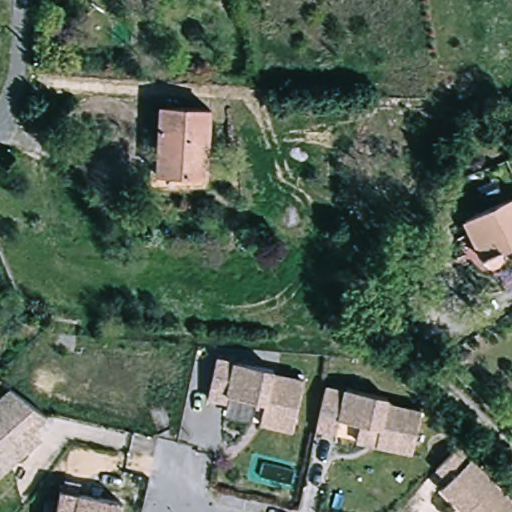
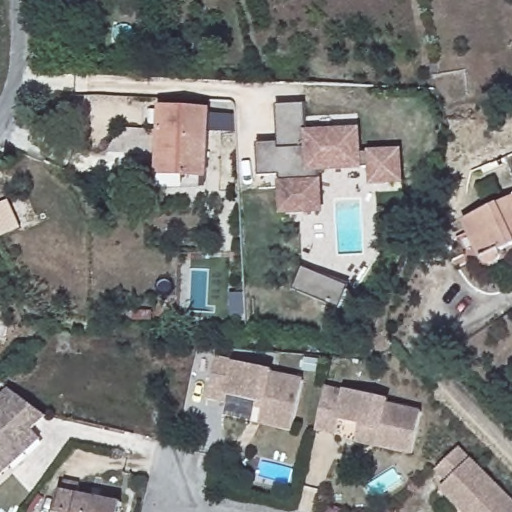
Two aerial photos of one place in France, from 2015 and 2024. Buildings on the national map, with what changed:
new [(306,102),(307,129),(361,126),(363,149),(403,147),(404,182),(370,184),(369,168),(321,170),(324,212),(280,214),(277,180),(281,179),(281,173),(260,174),(258,143),(279,142),(277,103),(306,102)]
unchanged [(209,175),(160,171),(165,104),(214,107),(209,175)]
unchanged [(508,252),(508,255),(506,258),(503,262),(498,263),(493,262),(488,260),(485,255),(467,220),(512,198),(512,244),(507,247),(508,252)]
new [(9,200),(22,227),(0,238),(0,204),(9,200)]
new [(338,308),(303,294),(291,289),(301,266),(312,271),(347,285),(338,308)]
unchanged [(275,376),(306,382),(295,432),(262,424),(267,405),(231,396),(229,402),(210,398),(217,371),(219,359),(237,363),(276,371),(275,376)]
unchanged [(360,423),(340,420),(337,433),(316,428),(325,387),(344,391),(345,388),(387,397),(386,403),(421,411),(413,452),(376,444),(356,440),(360,423)]
unchanged [(11,388),(36,406),(46,412),(48,414),(34,427),(43,437),(14,465),(0,478),(0,398),(11,388)]
unchanged [(439,471),(461,447),(512,497),(512,512),(468,512),(445,489),(451,482),(439,471)]
unchanged [(62,493),(64,493),(66,483),(81,487),(79,496),(124,505),(122,512),(58,512),(62,493)]

